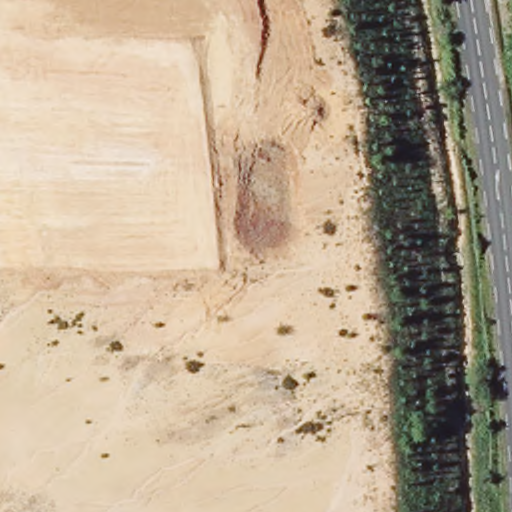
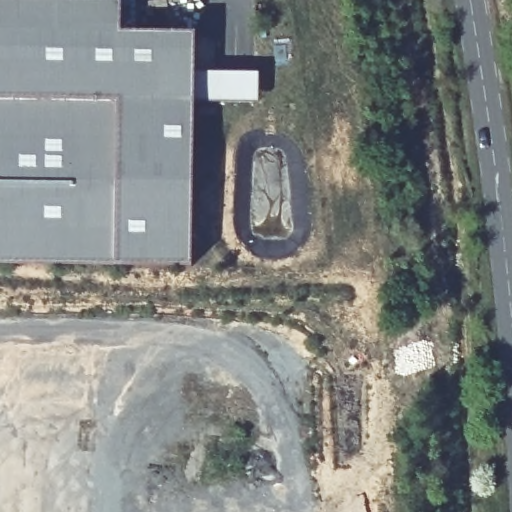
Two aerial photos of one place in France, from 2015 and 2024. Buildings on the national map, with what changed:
new [(121,0),(121,32),(194,34),(194,75),(259,73),(259,103),(193,103),(191,262),(116,262),(0,259),(0,0),(121,0)]

